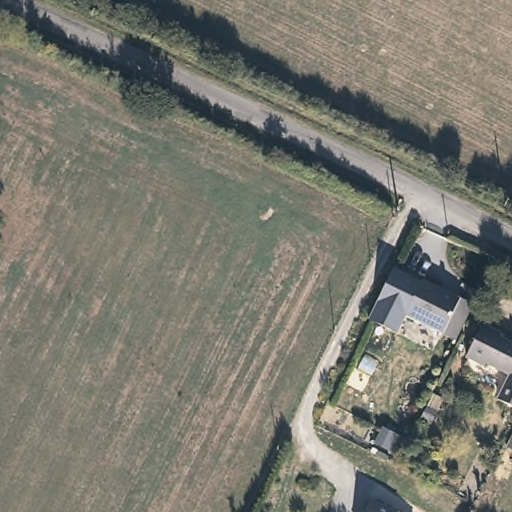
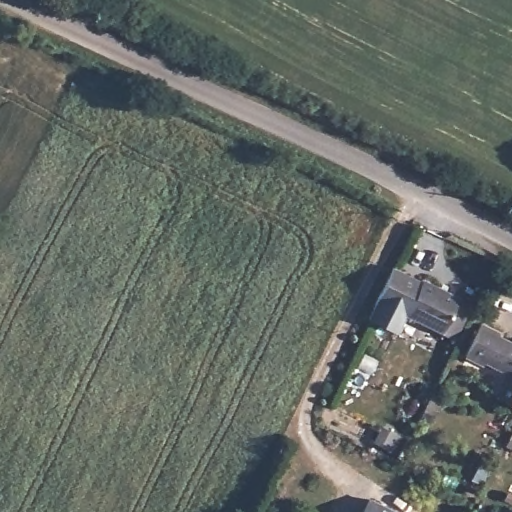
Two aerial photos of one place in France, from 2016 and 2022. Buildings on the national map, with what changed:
unchanged [(455,293),(437,329),(401,311),(419,276),(455,293)]
unchanged [(497,335),(497,338),(512,346),(512,407),(496,399),(507,374),(485,363),(483,367),(463,357),(478,325),(497,335)]
unchanged [(360,512),(367,497),(398,512),(360,512)]

